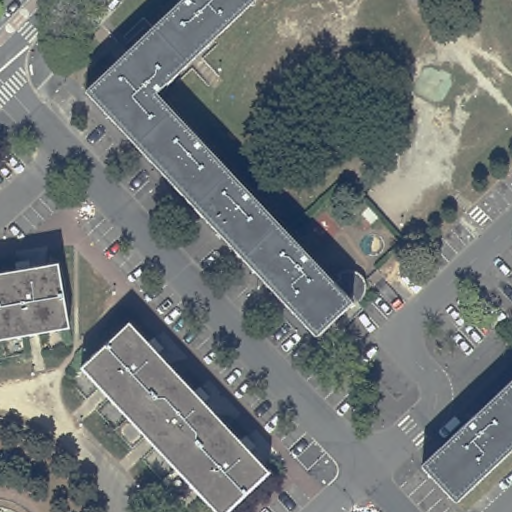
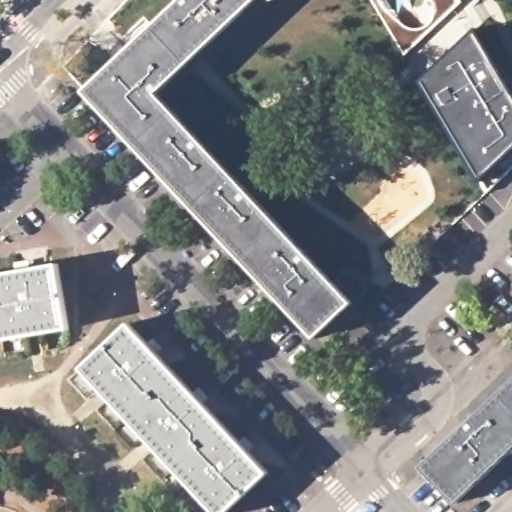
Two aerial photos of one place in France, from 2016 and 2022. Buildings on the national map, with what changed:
unchanged [(343,269),(344,268),(345,268),(347,267),(349,266),(351,266),(352,265),(354,265),(355,265),(357,266),(358,266),(360,266),(361,267),(363,268),(364,268),(365,269),(366,270),(367,271),(368,273),(369,274),(370,275),(370,277),(371,278),(371,279),(372,281),(372,282),(372,285),(371,287),(371,288),(370,290),(370,291),(369,293),(368,294),(367,295),(366,296),(365,297),(364,298),(363,299),(358,294),(356,296),(357,297),(321,332),(89,88),(183,0),(255,0),(160,88),(339,278),(344,273),(342,270),(343,269)]
new [(404,55),(371,0),(380,0),(385,8),(406,26),(413,29),(422,28),(429,23),(432,16),(433,6),(429,0),(460,0),(461,2),(404,55)]
new [(512,169),(486,192),(421,81),(477,28),(512,86),(512,169)]
unchanged [(60,265),(71,329),(0,341),(0,275),(60,265)]
unchanged [(129,324),(268,472),(225,512),(216,512),(82,368),(129,324)]
unchanged [(512,383),(512,451),(461,497),(428,460),(512,383)]

